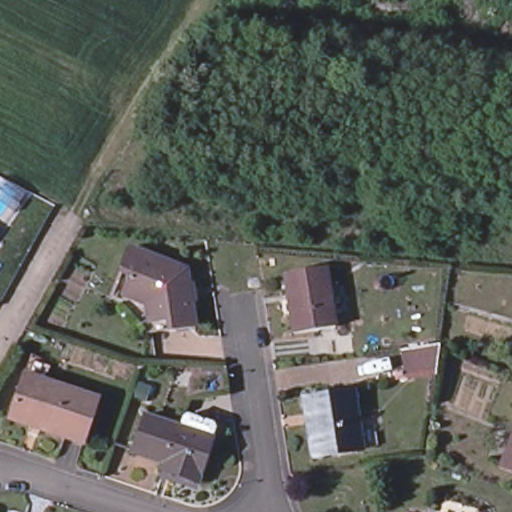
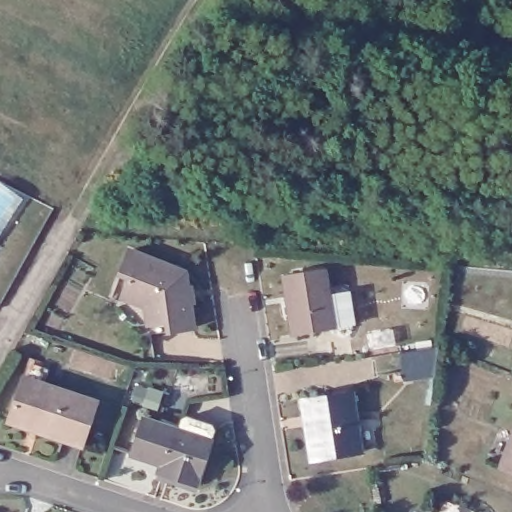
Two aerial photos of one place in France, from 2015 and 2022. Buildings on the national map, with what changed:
unchanged [(124,271),(134,247),(190,271),(199,326),(155,333),(150,306),(124,295),(132,276),(124,271)]
unchanged [(328,266),(338,327),(296,333),(286,273),(328,266)]
unchanged [(100,400),(85,444),(12,420),(27,375),(100,400)]
unchanged [(352,390),(362,450),(320,458),(317,440),(310,442),(302,398),(352,390)]
unchanged [(174,476),(176,467),(137,454),(150,417),(183,429),(187,418),(192,416),(217,425),(219,430),(215,440),(201,485),(174,476)]
unchanged [(512,423),(512,472),(495,465),(512,423)]
unchanged [(440,512),(433,512),(434,509),(440,512)]

